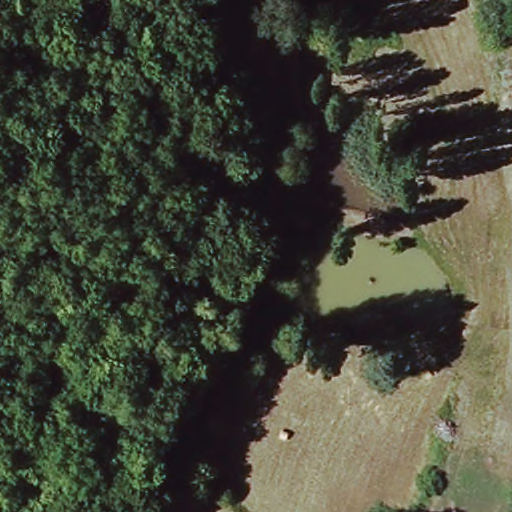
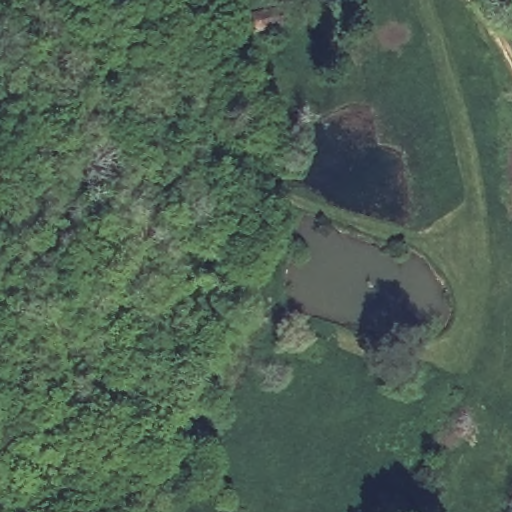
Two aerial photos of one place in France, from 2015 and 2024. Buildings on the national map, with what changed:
unchanged [(271,9),(273,27),(246,29),(245,12),(271,9)]

